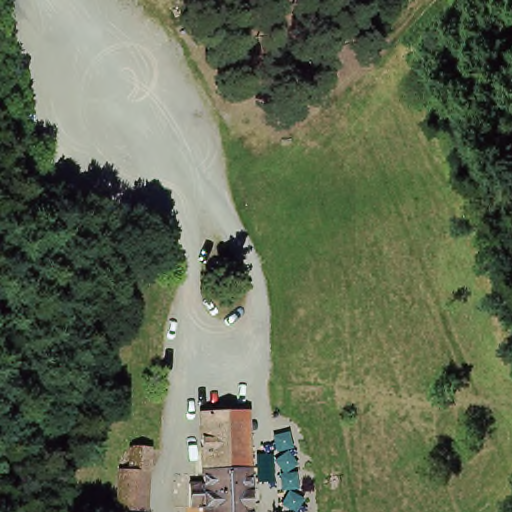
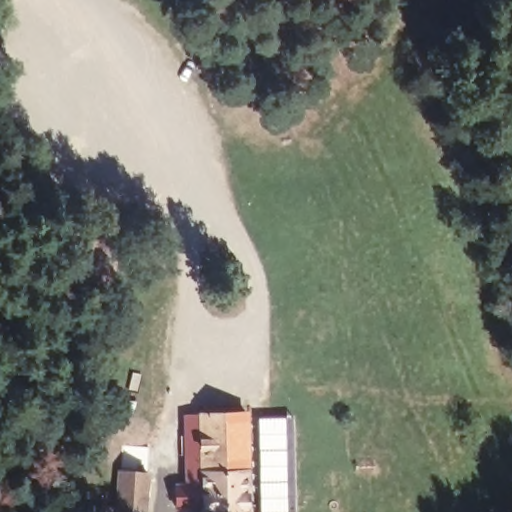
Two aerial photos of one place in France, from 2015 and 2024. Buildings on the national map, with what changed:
unchanged [(247,407),(251,512),(200,512),(199,406),(247,407)]
new [(294,414),(296,512),(259,512),(256,417),(294,414)]
unchanged [(150,512),(117,512),(119,473),(130,474),(130,445),(157,449),(150,512)]

